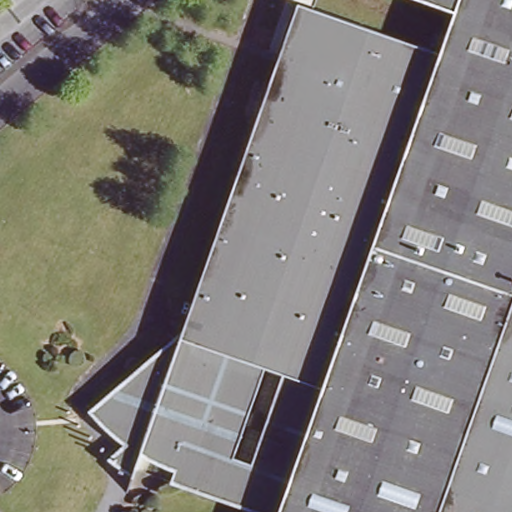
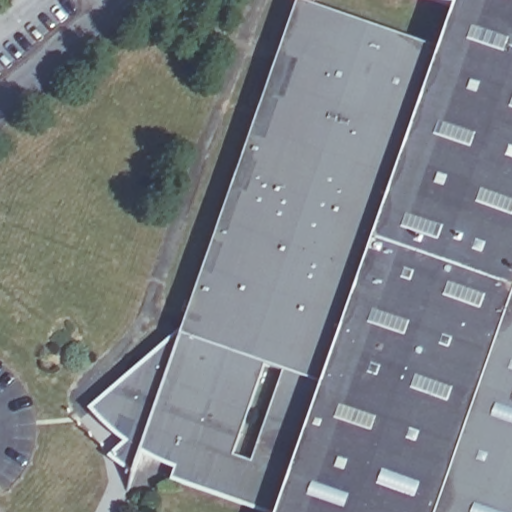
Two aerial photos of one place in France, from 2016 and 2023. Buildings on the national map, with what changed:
unchanged [(455,9),(431,0),(512,0),(512,512),(263,512),(175,482),(180,469),(153,454),(137,481),(112,465),(127,442),(90,415),(180,339),(297,7),(438,56),(455,9)]

